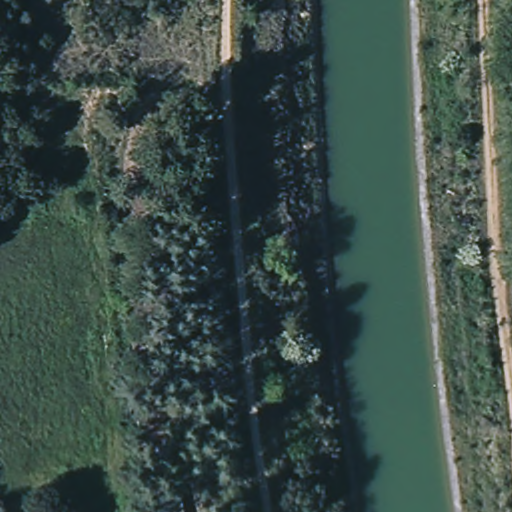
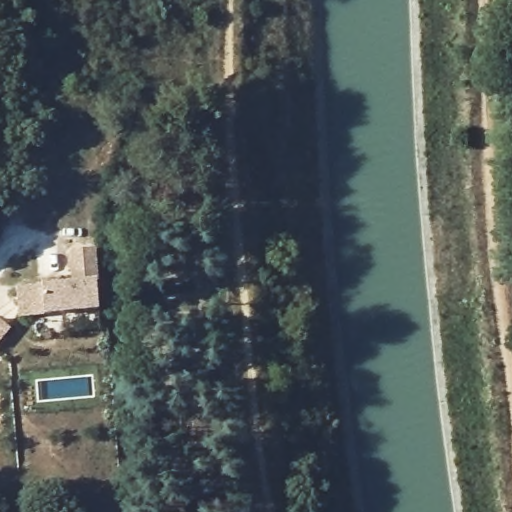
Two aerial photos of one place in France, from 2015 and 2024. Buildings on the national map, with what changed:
new [(96,249),(98,281),(99,311),(45,314),(18,316),(17,287),(43,285),(68,282),(70,251),(96,249)]

